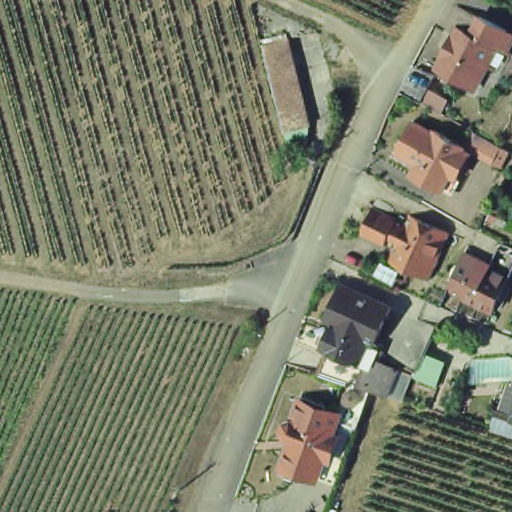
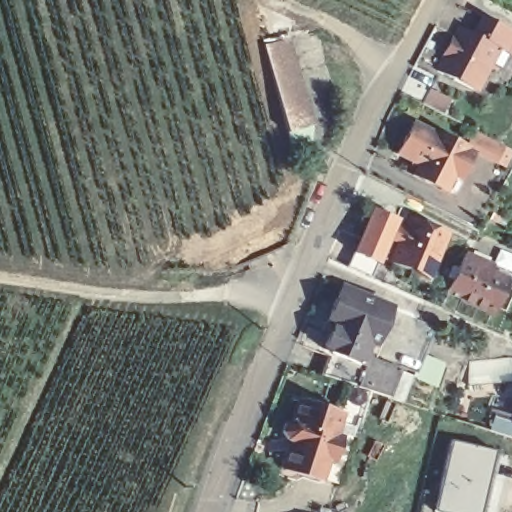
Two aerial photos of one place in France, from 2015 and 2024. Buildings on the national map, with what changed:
unchanged [(463,83),(446,75),(452,61),(450,60),(460,42),(461,44),(467,33),(480,39),(488,21),(512,33),(512,41),(506,52),(499,50),(484,85),(481,91),(463,83)]
unchanged [(292,45),(315,133),(290,137),(268,50),(292,45)]
unchanged [(430,72),(443,80),(430,106),(416,99),(430,72)]
unchanged [(456,178),(448,194),(417,179),(421,169),(400,159),(415,130),(417,127),(437,139),(440,135),(470,152),(479,135),(512,152),(512,155),(505,170),(476,155),(473,160),(462,180),(456,178)]
unchanged [(453,238),(433,285),(393,266),(401,248),(392,244),(389,250),(365,240),(377,215),(400,225),(400,226),(409,230),(413,220),(452,237),(453,238)]
unchanged [(446,295),(464,257),(465,257),(491,270),(490,273),(509,283),(492,319),(460,305),(461,302),(448,296),(446,295)]
unchanged [(405,405),(360,388),(365,370),(363,365),(324,351),(334,326),(325,324),(339,285),(395,305),(373,359),(415,376),(405,405)]
unchanged [(510,374),(510,375),(465,378),(462,356),(505,352),(512,355),(512,375),(510,374)]
unchanged [(502,431),(507,416),(506,416),(512,398),(512,434),(502,431)]
unchanged [(286,450),(290,452),(290,442),(285,439),(282,433),(286,422),(295,422),(300,401),(345,412),(340,433),(345,434),(335,465),(328,463),(325,483),(280,470),(286,450)]
new [(450,440),(493,450),(487,480),(492,480),(488,496),(483,495),(479,512),(435,512),(433,511),(450,440)]

